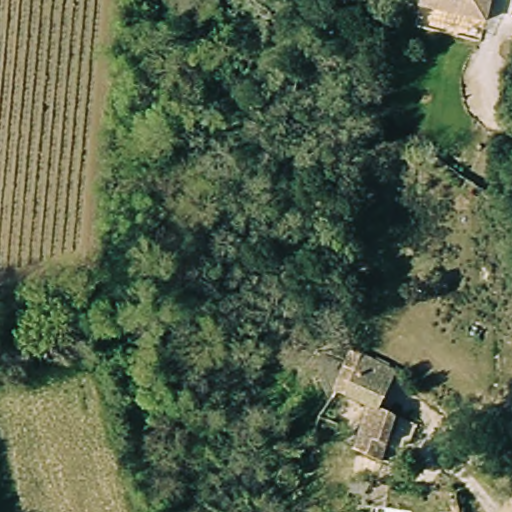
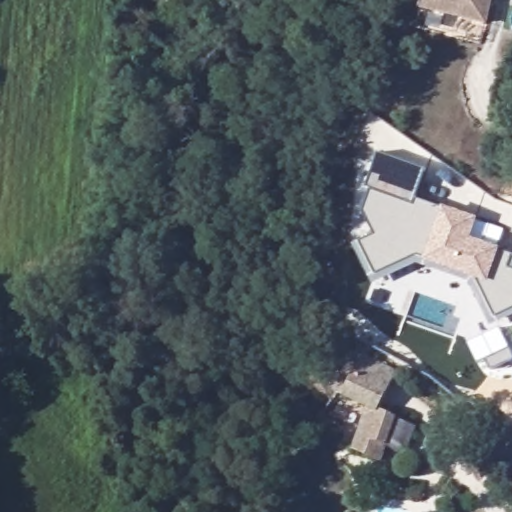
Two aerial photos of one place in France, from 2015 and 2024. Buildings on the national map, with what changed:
unchanged [(430,0),(498,0),(493,25),(428,12),(430,0)]
new [(425,169),(417,199),(442,208),(443,205),(478,216),(477,220),(504,230),(500,246),(500,250),(512,253),(512,255),(512,315),(490,325),(469,281),(417,263),(374,284),(354,245),(361,241),(362,242),(377,235),(365,212),(373,190),(368,188),(380,154),(425,169)]
unchanged [(401,376),(384,415),(382,421),(376,418),(337,398),(357,348),(401,376)]
unchanged [(405,425),(385,463),(358,452),(376,418),(382,421),(384,415),(405,425)]
unchanged [(377,510),(404,512),(377,512),(377,510)]

